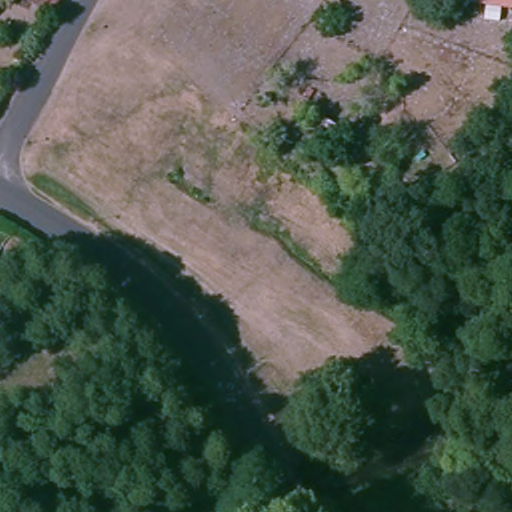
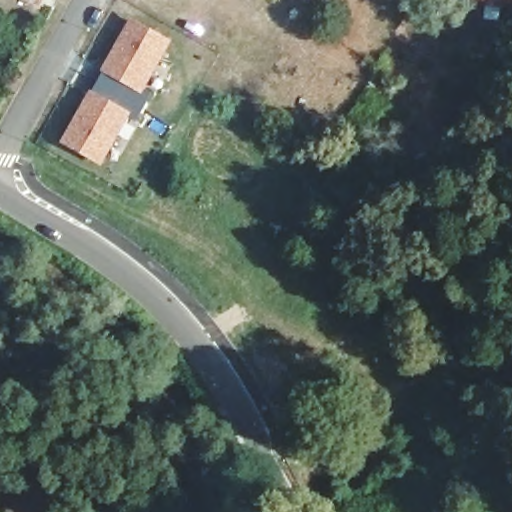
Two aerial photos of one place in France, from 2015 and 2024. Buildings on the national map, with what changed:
unchanged [(20,0),(51,0),(43,13),(20,0)]
unchanged [(479,3),(479,0),(512,0),(512,8),(479,3)]
new [(130,17),(173,41),(143,96),(100,72),(130,17)]
new [(100,72),(143,96),(148,99),(138,116),(134,114),(90,89),(100,72)]
new [(90,89),(134,114),(102,167),(59,143),(90,89)]

